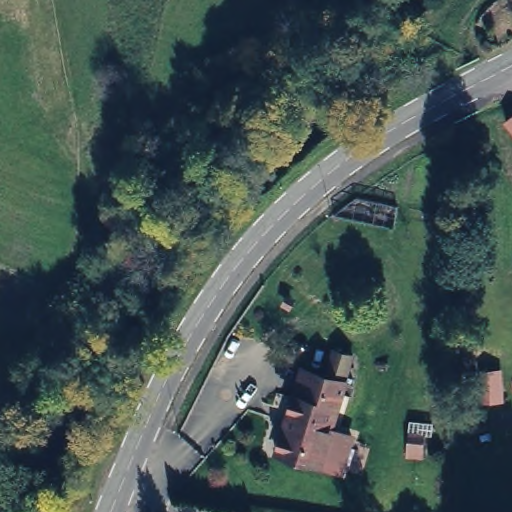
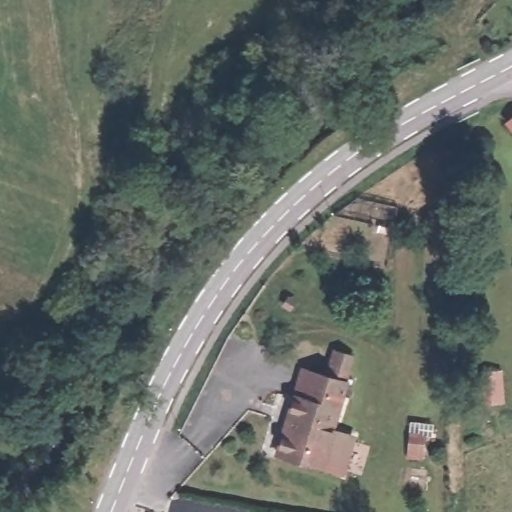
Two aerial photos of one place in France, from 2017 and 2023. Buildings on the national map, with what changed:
unchanged [(498,122),(512,112),(512,143),(498,122)]
unchanged [(336,386),(312,464),(269,451),(292,369),(319,375),(325,354),(344,361),(336,386)]
unchanged [(424,438),(423,458),(421,462),(406,459),(409,437),(424,438)]

